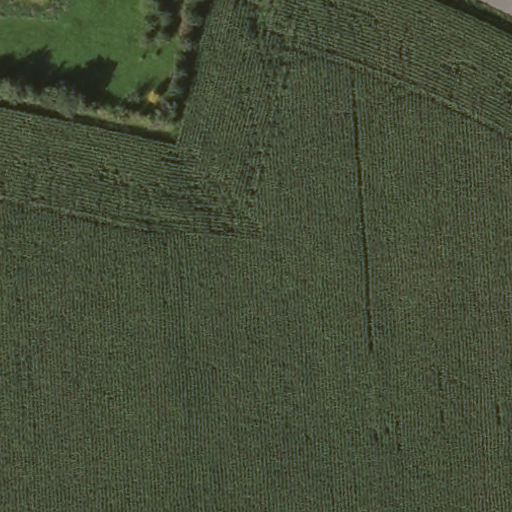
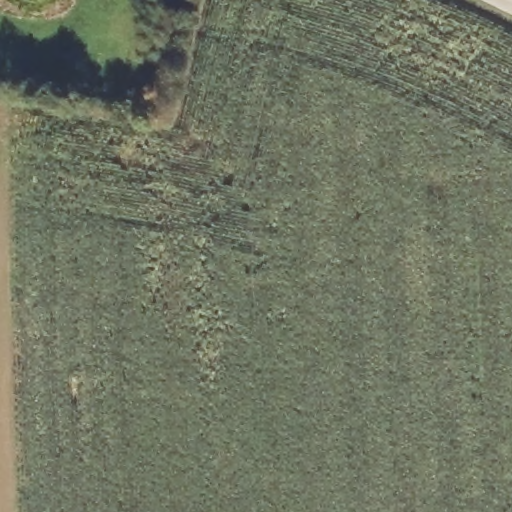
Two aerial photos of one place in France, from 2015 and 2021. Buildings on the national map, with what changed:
[]

